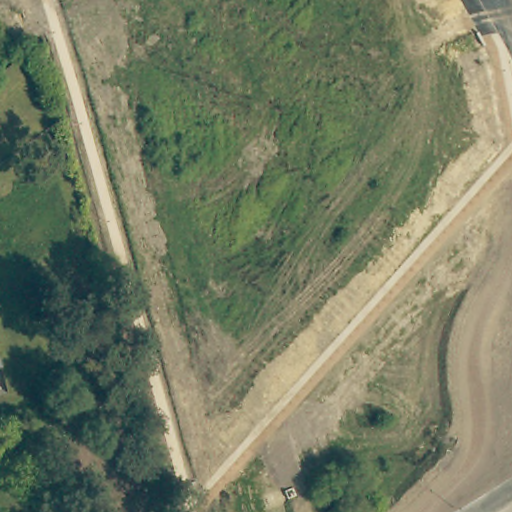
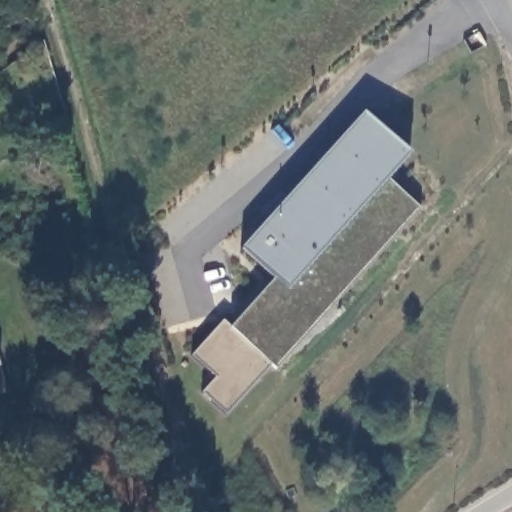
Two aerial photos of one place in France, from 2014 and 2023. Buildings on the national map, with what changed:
new [(275,368),(270,364),(224,415),(201,393),(216,377),(192,356),(224,320),(231,327),(273,278),(241,249),(242,247),(364,112),(410,153),(387,177),(418,207),(275,368)]
unchanged [(0,395),(0,370),(5,393),(0,395)]

